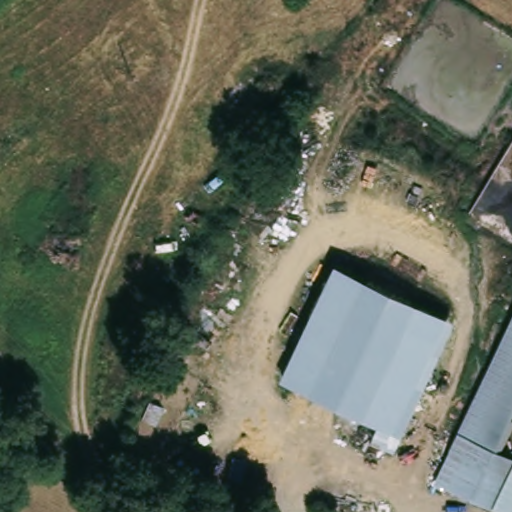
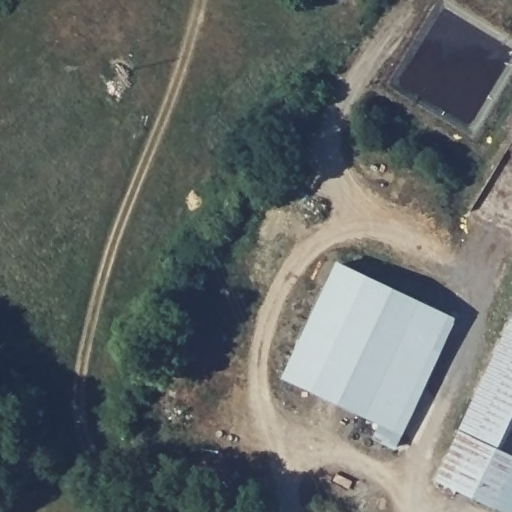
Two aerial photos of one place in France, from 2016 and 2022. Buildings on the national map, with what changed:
unchanged [(331,259),(441,311),(387,424),(278,373),(331,259)]
unchanged [(512,304),(512,400),(490,444),(453,427),(512,304)]
unchanged [(512,455),(512,458),(490,503),(431,474),(453,427),(490,444),(512,455)]

